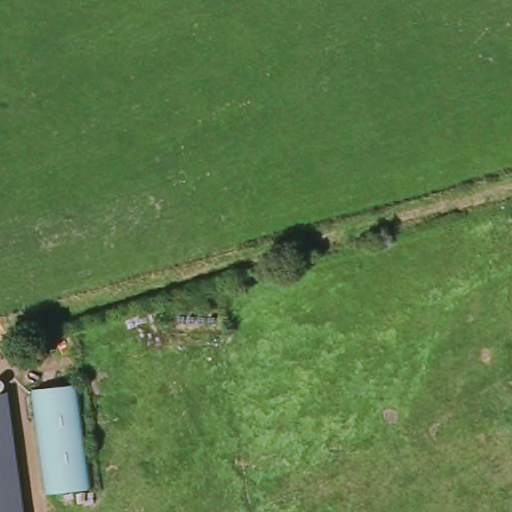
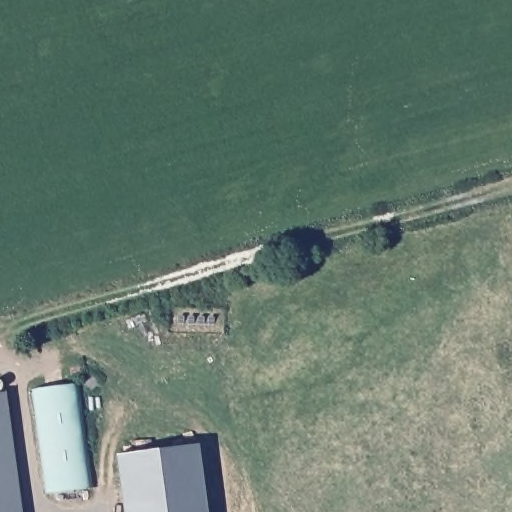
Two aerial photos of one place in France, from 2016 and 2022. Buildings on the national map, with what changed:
unchanged [(43,490),(30,387),(77,381),(90,484),(43,490)]
unchanged [(0,394),(9,393),(25,512),(0,512),(0,394)]
new [(209,512),(124,512),(117,457),(200,445),(209,512)]

